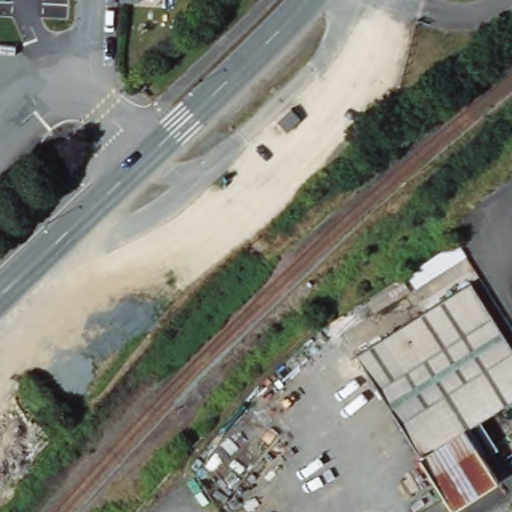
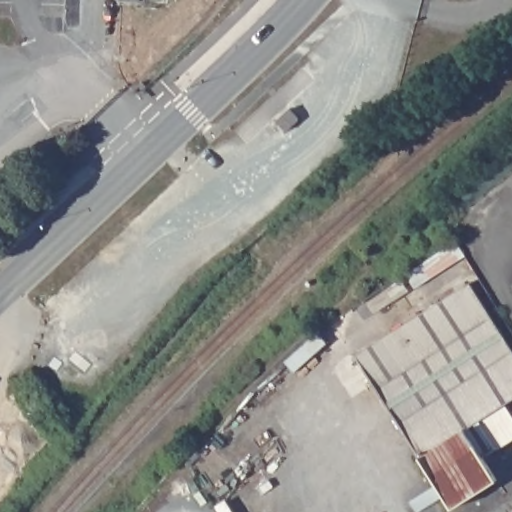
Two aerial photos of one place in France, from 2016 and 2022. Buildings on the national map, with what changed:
unchanged [(413,322),(471,286),(512,352),(512,403),(479,424),(497,452),(483,461),(497,483),(453,511),(356,357),(413,322)]

